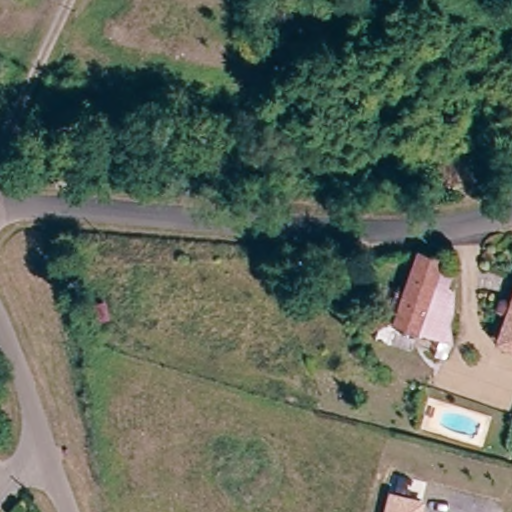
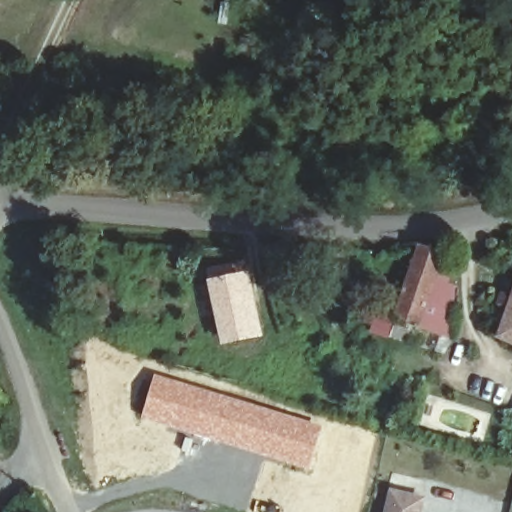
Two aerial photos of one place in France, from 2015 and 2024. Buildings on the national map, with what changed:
unchanged [(81,73),(89,57),(98,61),(89,77),(81,73)]
unchanged [(41,181),(57,182),(58,196),(39,194),(41,181)]
new [(396,307),(382,300),(389,285),(403,291),(422,251),(440,258),(453,265),(448,285),(453,287),(453,341),(415,327),(407,342),(379,332),(387,315),(392,317),(396,307)]
demolished [(396,307),(403,291),(422,251),(440,258),(428,284),(437,289),(429,306),(422,310),(415,327),(392,317),(396,307)]
new [(207,281),(249,273),(263,338),(220,347),(207,281)]
unchanged [(494,344),(504,322),(494,319),(488,312),(489,297),(496,286),(505,280),(512,280),(512,352),(494,344)]
demolished [(455,313),(461,313),(460,332),(459,332),(445,332),(446,313),(455,313)]
new [(154,374),(321,425),(308,470),(185,433),(140,417),(154,374)]
unchanged [(416,494),(403,491),(406,477),(419,480),(416,494)]
unchanged [(390,496),(415,501),(420,502),(417,512),(386,512),(390,496)]

